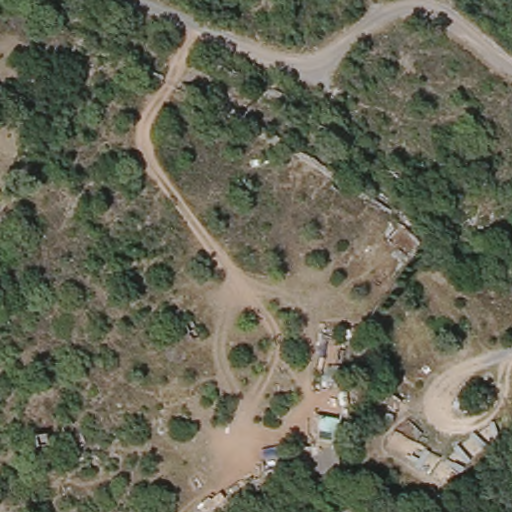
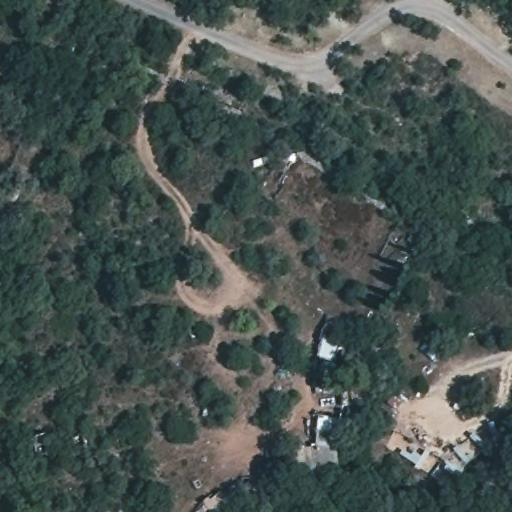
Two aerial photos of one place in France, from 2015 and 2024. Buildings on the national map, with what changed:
unchanged [(337,472),(306,472),(306,450),(337,449),(337,472)]

